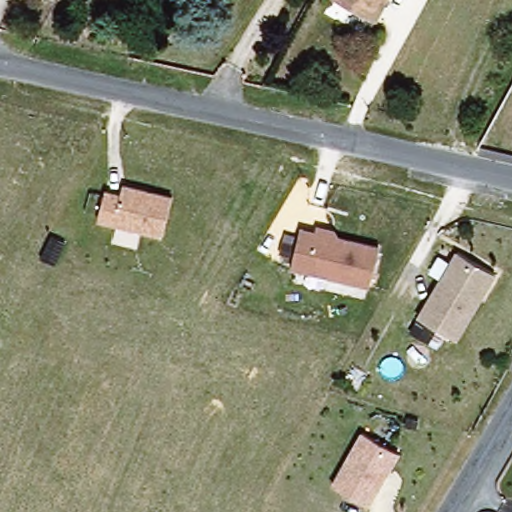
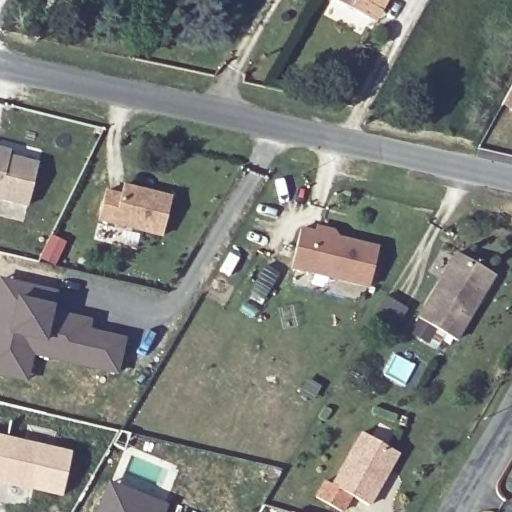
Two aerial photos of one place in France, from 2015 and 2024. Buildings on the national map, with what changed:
unchanged [(372,19),(363,14),(339,0),(383,0),(372,19)]
new [(5,156),(40,165),(30,206),(0,199),(0,150),(5,156)]
unchanged [(121,194),(124,181),(175,193),(163,237),(96,222),(105,188),(121,194)]
unchanged [(314,229),(315,223),(332,227),(338,234),(378,244),(371,286),(291,268),(300,225),(314,229)]
unchanged [(436,282),(423,274),(435,255),(451,261),(456,253),(500,278),(461,346),(415,321),(436,282)]
new [(0,287),(4,273),(59,285),(56,300),(55,305),(94,313),(92,323),(109,327),(129,331),(119,375),(100,370),(82,367),(35,356),(32,363),(29,383),(0,377),(0,287)]
unchanged [(401,452),(370,507),(331,486),(360,431),(401,452)]
new [(65,496),(0,481),(0,438),(74,454),(65,496)]
new [(170,507),(168,512),(131,512),(106,502),(112,485),(170,507)]
new [(131,512),(102,512),(106,502),(131,512)]

